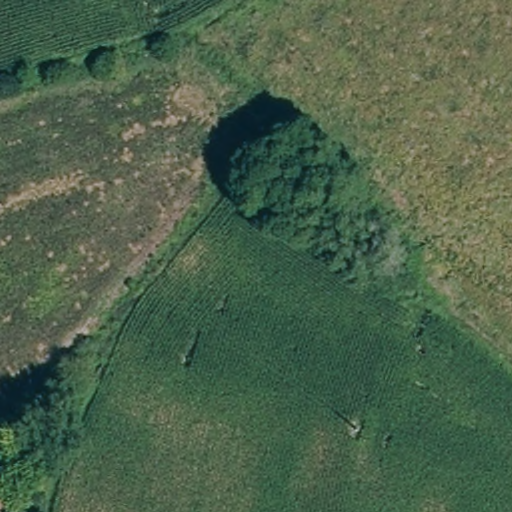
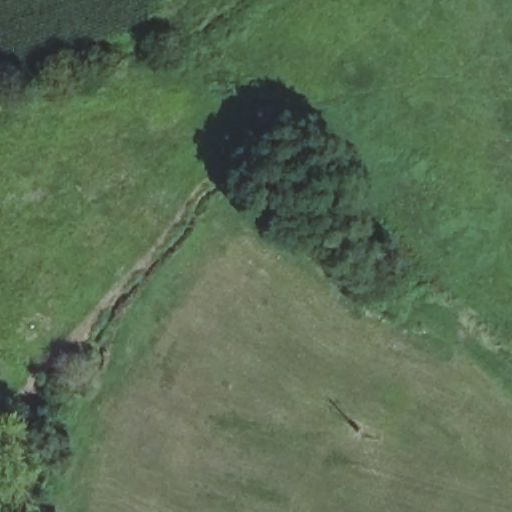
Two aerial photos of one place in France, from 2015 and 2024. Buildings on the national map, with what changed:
[]

